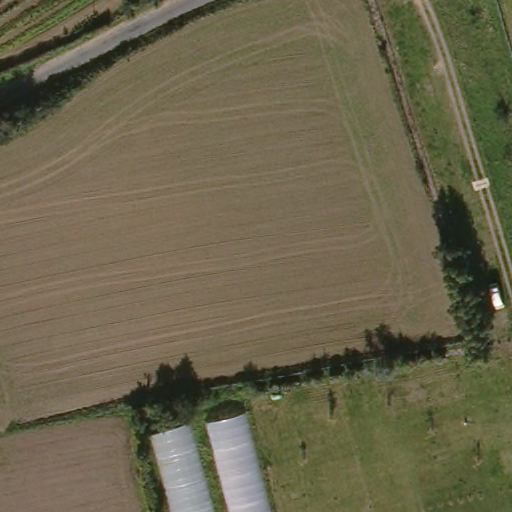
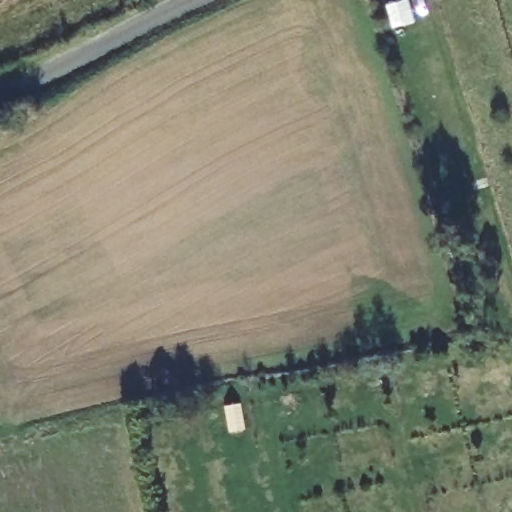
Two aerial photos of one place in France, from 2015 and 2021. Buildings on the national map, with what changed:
demolished [(147,431),(247,412),(274,512),(169,512),(147,431)]

